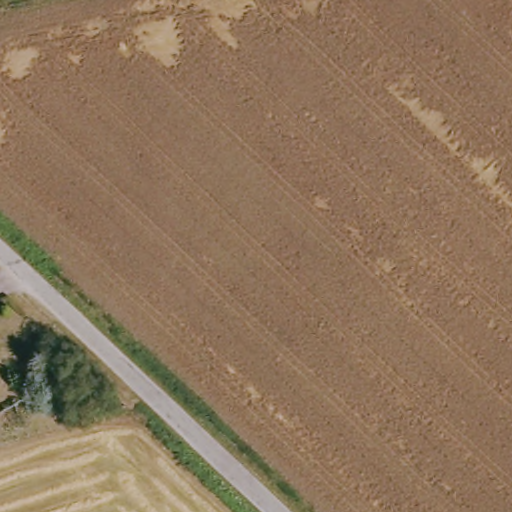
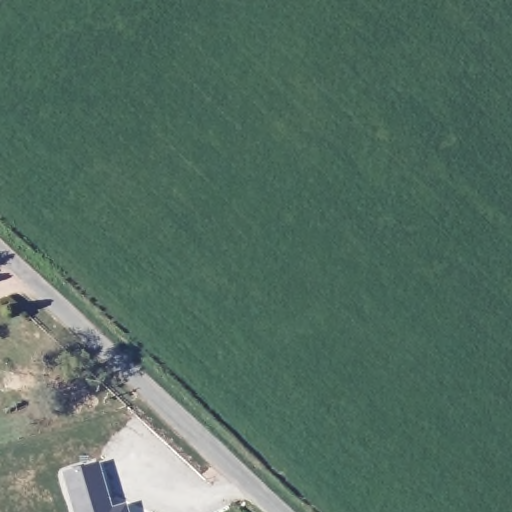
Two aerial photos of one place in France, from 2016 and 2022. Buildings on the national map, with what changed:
new [(97,462),(109,506),(105,510),(107,512),(76,512),(63,471),(97,462)]
new [(114,512),(126,509),(127,512),(114,512)]

